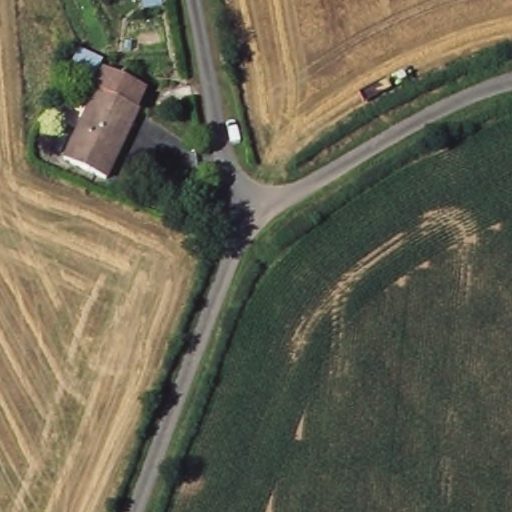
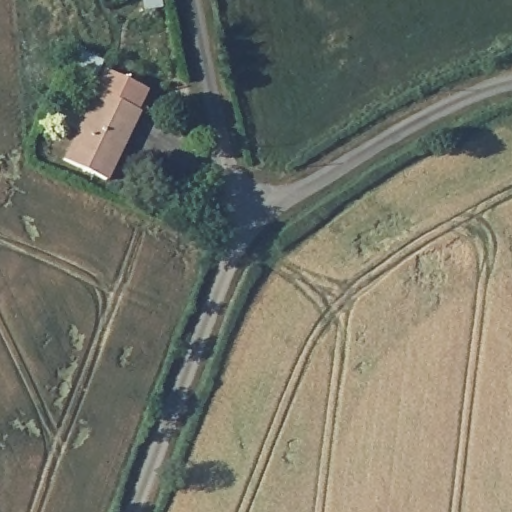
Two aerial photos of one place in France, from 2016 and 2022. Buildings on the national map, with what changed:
unchanged [(104,170),(65,153),(99,88),(137,107),(104,170)]

